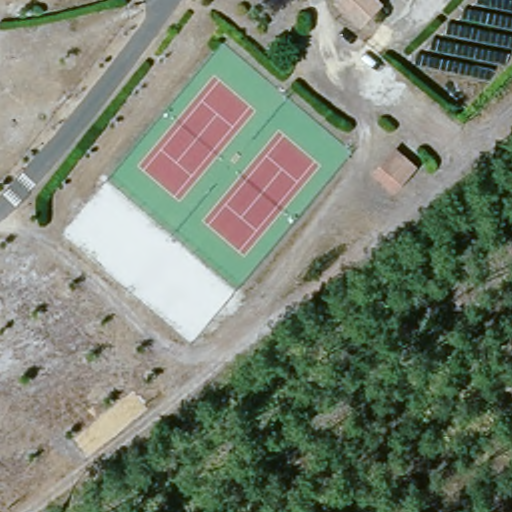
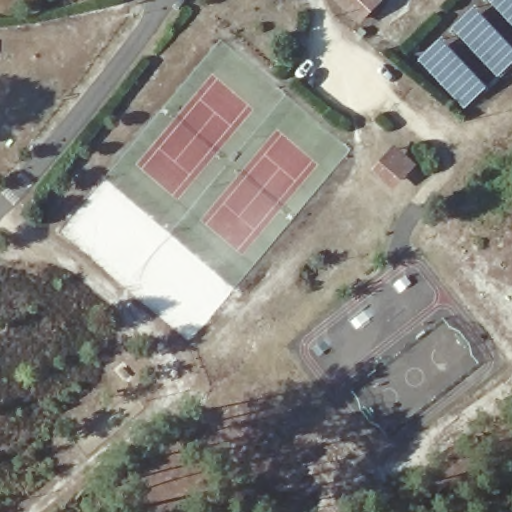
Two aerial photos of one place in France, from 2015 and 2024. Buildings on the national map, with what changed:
unchanged [(343,0),(380,0),(382,1),(364,18),(343,0)]
new [(512,0),(512,25),(488,0),(512,0)]
new [(512,65),(499,77),(453,29),(474,8),(512,49),(512,65)]
new [(419,60),(441,40),(487,88),(465,108),(419,60)]
unchanged [(416,163),(420,166),(415,172),(409,169),(404,174),(390,163),(377,152),(393,134),(405,144),(420,156),(416,163)]

